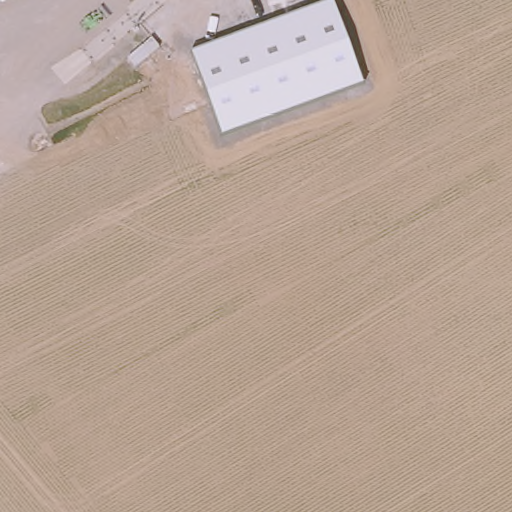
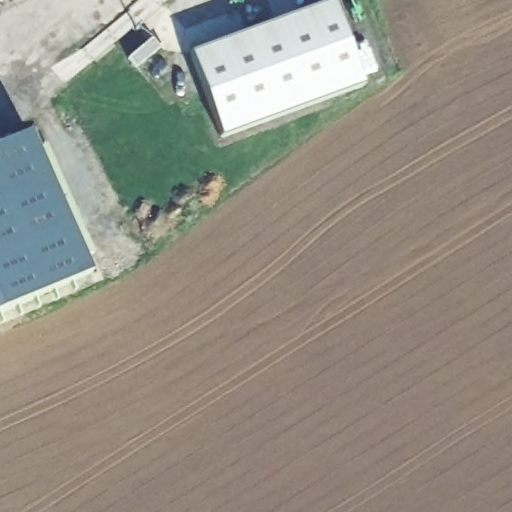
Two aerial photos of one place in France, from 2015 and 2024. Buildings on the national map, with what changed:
unchanged [(331,3),(362,86),(222,138),(192,55),(331,3)]
new [(95,270),(0,312),(0,143),(33,128),(95,270)]

